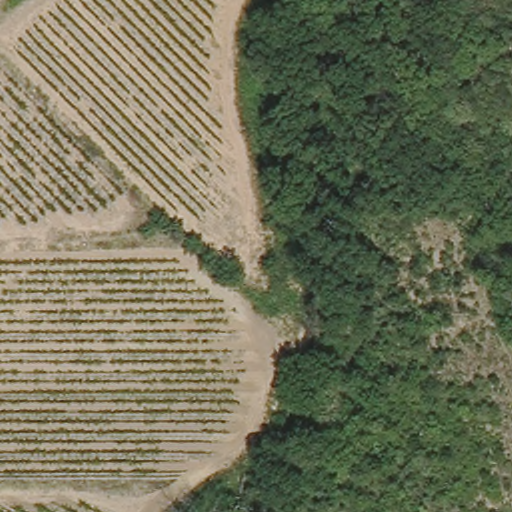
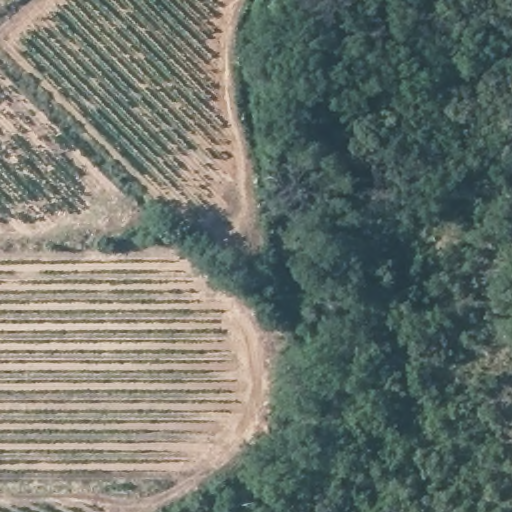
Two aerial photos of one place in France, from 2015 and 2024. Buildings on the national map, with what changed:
[]

